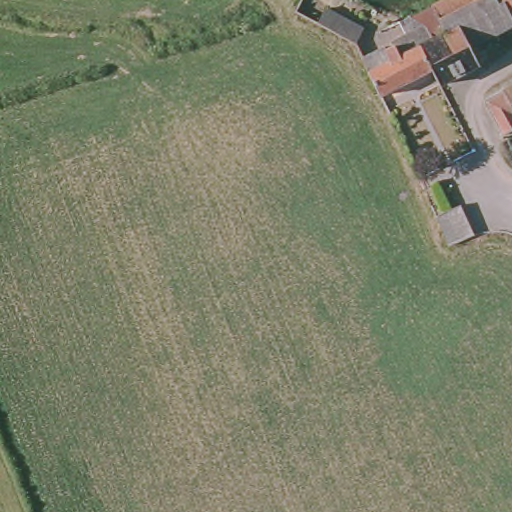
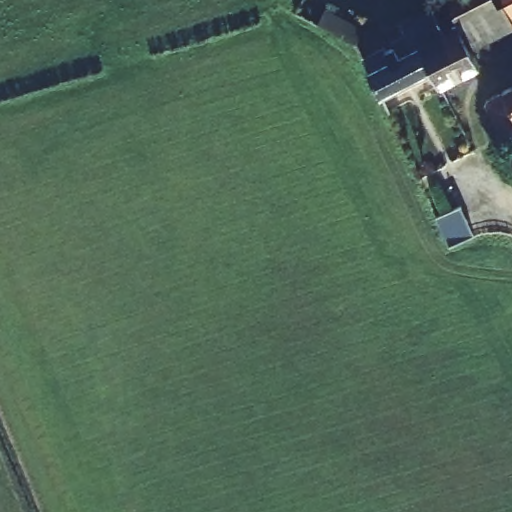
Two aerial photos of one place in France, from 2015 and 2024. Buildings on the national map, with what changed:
unchanged [(461,0),(487,0),(490,6),(503,0),(512,0),(512,32),(473,52),(462,30),(445,38),(432,13),(461,0)]
unchanged [(362,24),(357,41),(345,37),(315,26),(320,12),(362,24)]
unchanged [(380,59),(391,54),(382,39),(401,29),(422,18),(427,15),(432,13),(445,38),(462,30),(473,52),(464,56),(472,73),(427,94),(420,82),(418,79),(418,78),(372,100),(366,86),(355,63),(376,53),(380,59)]
unchanged [(512,93),(512,136),(495,144),(478,110),(512,93)]
unchanged [(460,207),(473,236),(450,247),(437,216),(460,207)]

